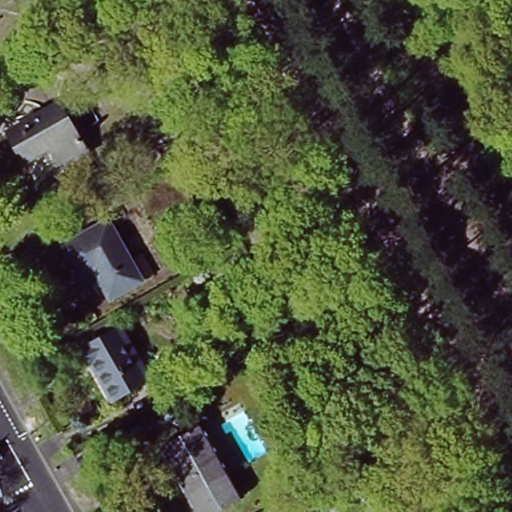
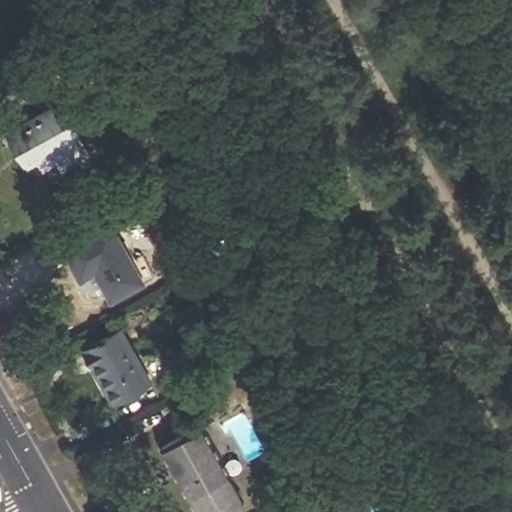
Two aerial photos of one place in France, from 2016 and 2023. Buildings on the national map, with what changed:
unchanged [(62,101),(90,152),(63,167),(53,148),(26,163),(9,131),(62,101)]
unchanged [(109,222),(144,283),(114,300),(99,272),(83,281),(64,248),(109,222)]
unchanged [(146,383),(111,403),(81,351),(117,330),(146,383)]
unchanged [(242,499),(219,512),(201,512),(166,452),(203,429),(242,499)]

